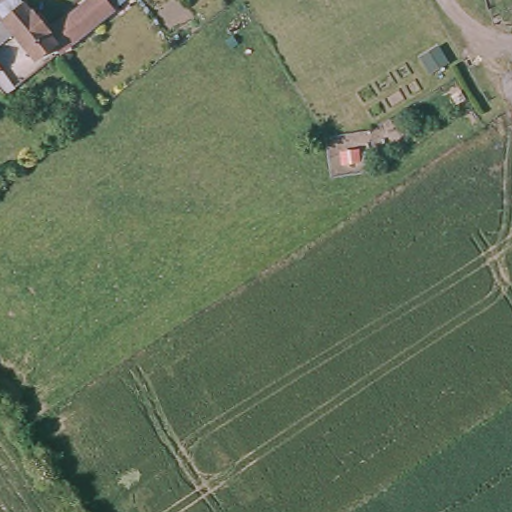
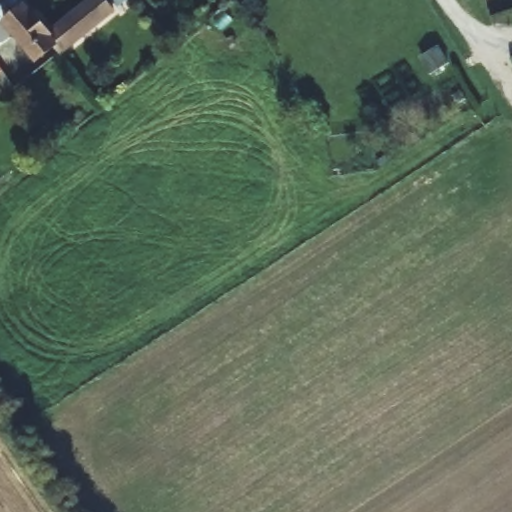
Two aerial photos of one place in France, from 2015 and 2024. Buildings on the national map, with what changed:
unchanged [(53,49),(46,41),(28,57),(8,31),(0,38),(0,0),(13,0),(22,11),(25,8),(41,29),(78,0),(99,0),(105,7),(66,38),(53,49)]
unchanged [(111,3),(109,0),(115,0),(111,3)]
unchanged [(0,91),(0,73),(8,84),(0,91)]

